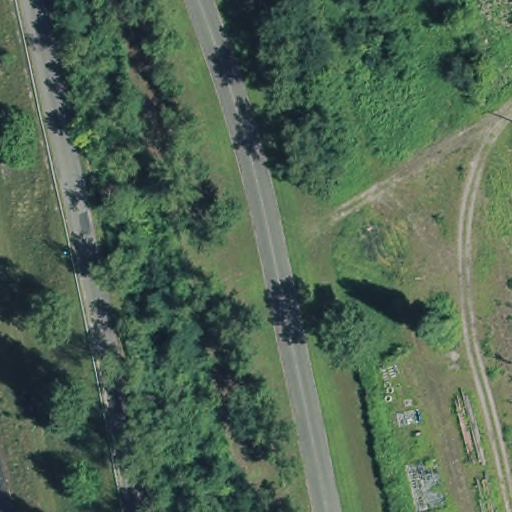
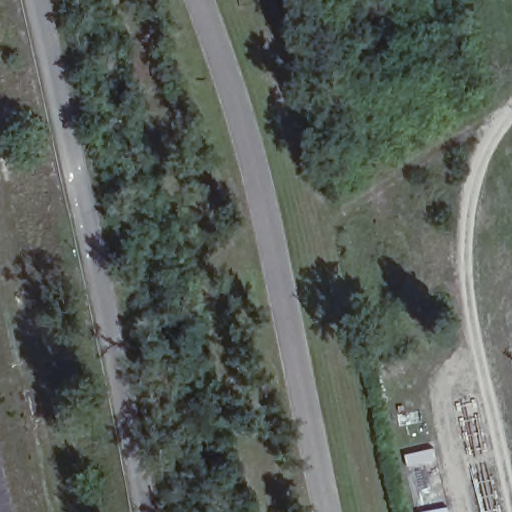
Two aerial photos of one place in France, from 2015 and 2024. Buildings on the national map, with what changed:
[]

